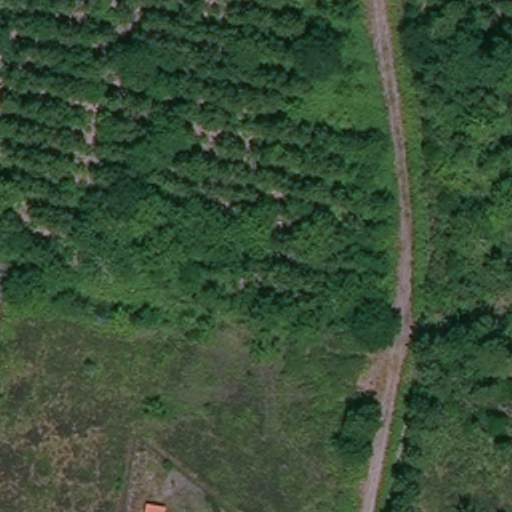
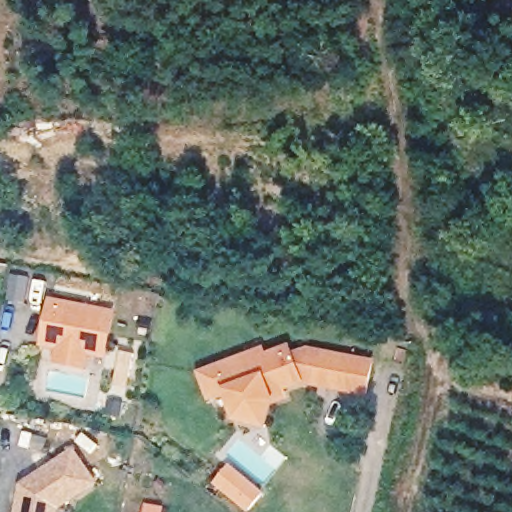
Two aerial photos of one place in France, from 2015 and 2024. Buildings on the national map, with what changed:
new [(117,311),(109,360),(91,357),(89,371),(54,365),(56,350),(41,348),(50,298),(117,311)]
new [(239,414),(231,395),(214,402),(204,378),(250,358),(253,365),(291,348),(294,356),(302,352),(308,350),(322,352),(372,360),(367,392),(316,383),(303,381),(286,390),(290,398),(277,403),(272,429),(243,423),(239,414)]
new [(68,460),(90,492),(60,512),(14,512),(17,496),(68,460)]

